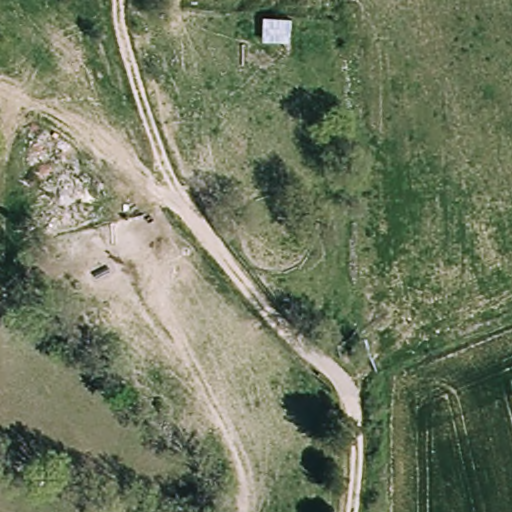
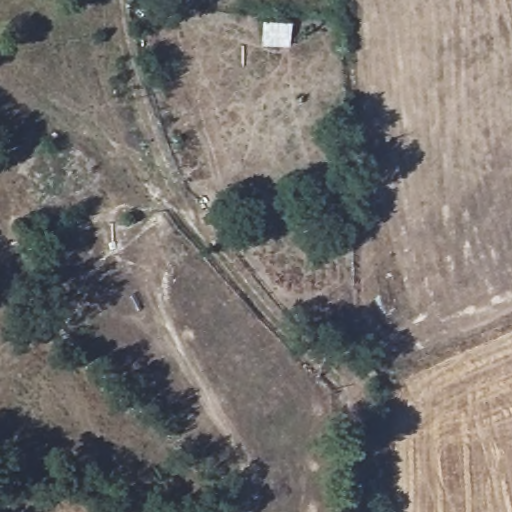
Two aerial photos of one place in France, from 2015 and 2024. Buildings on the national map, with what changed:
unchanged [(261,18),(289,19),(288,44),(261,44),(261,18)]

